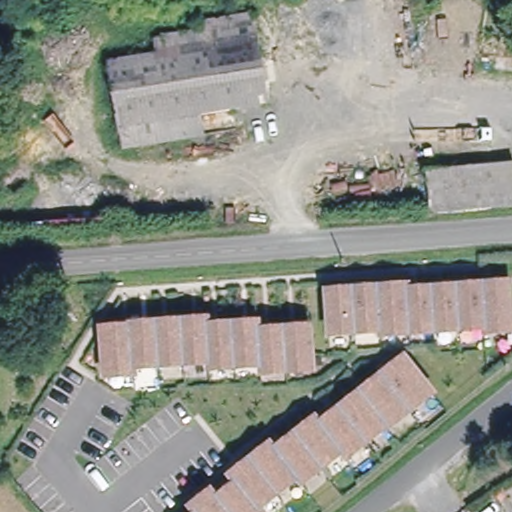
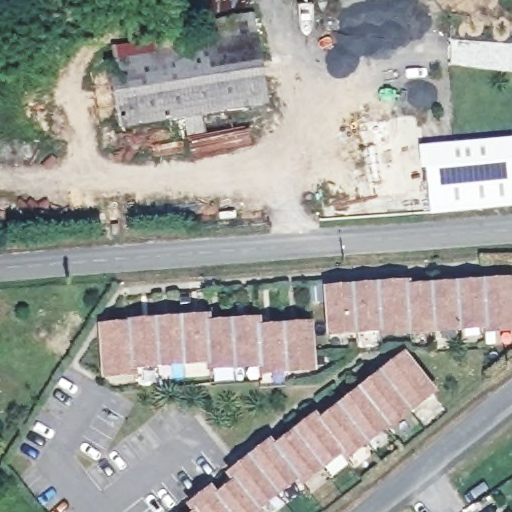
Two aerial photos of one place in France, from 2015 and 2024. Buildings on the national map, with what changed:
unchanged [(157,56),(156,43),(204,34),(202,25),(254,17),(267,102),(200,113),(203,135),(122,148),(109,64),(157,56)]
new [(422,170),(419,147),(512,138),(512,163),(430,171),(422,170)]
unchanged [(512,163),(512,206),(433,211),(430,171),(512,163)]
unchanged [(332,292),(411,285),(412,289),(512,279),(512,324),(490,326),(489,322),(386,331),(385,327),(335,332),(332,292)]
unchanged [(103,327),(131,323),(131,322),(207,314),(208,321),(258,316),(260,323),(310,318),(313,359),(262,363),(261,356),(210,360),(210,354),(135,361),(135,367),(106,370),(103,327)]
unchanged [(223,503),(241,487),(236,481),(276,448),(280,454),(320,422),(324,428),(412,358),(440,393),(394,430),(392,427),(350,460),(345,455),(305,485),(301,480),(261,511),(262,512),(197,512),(217,496),(223,503)]

